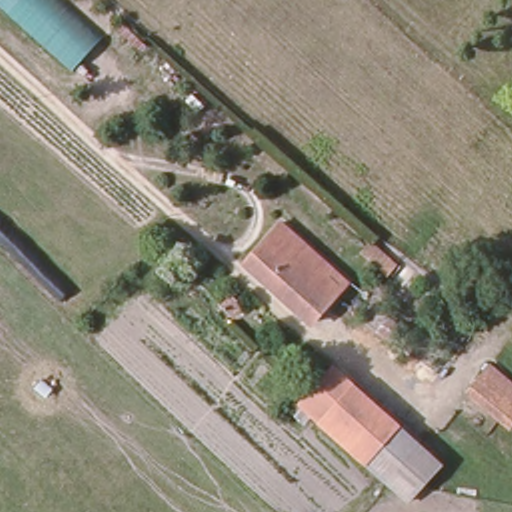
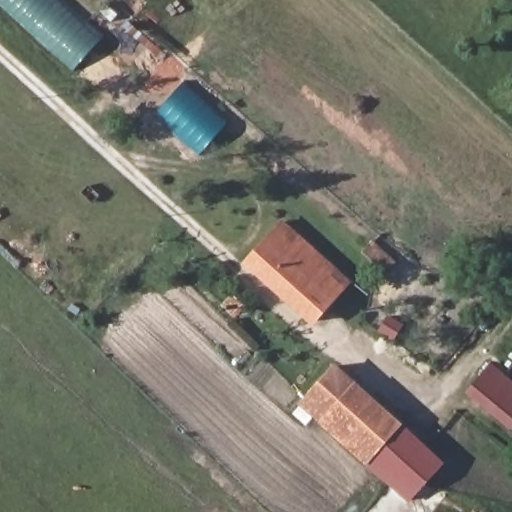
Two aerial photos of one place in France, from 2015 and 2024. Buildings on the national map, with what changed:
unchanged [(17,20),(0,6),(0,0),(34,0),(17,20)]
unchanged [(34,0),(64,0),(102,38),(72,70),(17,20),(34,0)]
new [(186,80),(230,119),(199,156),(154,117),(186,80)]
unchanged [(249,262),(285,222),(347,278),(312,319),(249,262)]
unchanged [(357,248),(367,238),(405,268),(397,278),(357,248)]
unchanged [(230,313),(222,305),(232,294),(240,302),(230,313)]
unchanged [(357,457),(298,404),(308,394),(335,364),(391,414),(425,445),(387,483),(357,457)]
unchanged [(497,376),(512,391),(512,420),(482,392),(497,376)]
unchanged [(442,461),(406,501),(387,483),(425,445),(442,461)]

